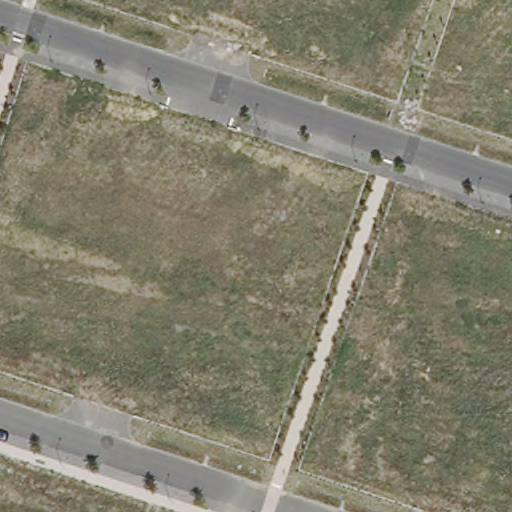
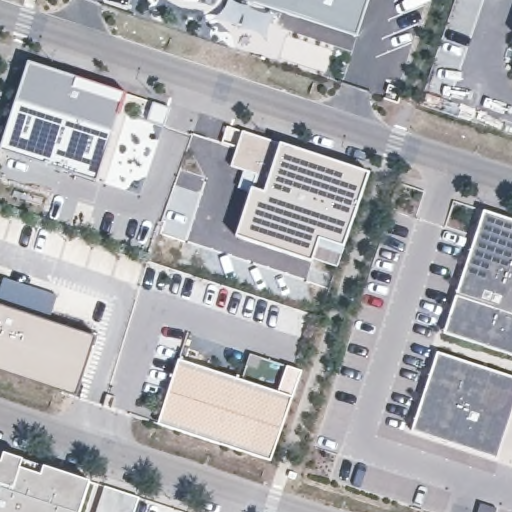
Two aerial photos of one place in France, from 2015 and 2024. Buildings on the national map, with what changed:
new [(361,34),(254,0),(372,0),(361,34)]
new [(28,61),(77,77),(74,84),(122,99),(97,179),(1,149),(28,61)]
new [(220,141),(226,125),(241,130),(370,172),(337,267),(291,256),(235,236),(249,191),(237,187),(242,171),(229,166),(236,147),(220,141)]
new [(512,353),(445,332),(485,210),(512,220),(512,353)]
new [(0,370),(0,287),(4,277),(59,295),(50,322),(95,337),(76,395),(0,370)]
new [(512,412),(497,457),(413,430),(438,352),(512,378),(512,412)]
new [(292,396),(271,458),(160,422),(179,360),(292,396)]
new [(0,466),(4,454),(23,460),(19,474),(41,480),(47,470),(91,485),(82,512),(0,512),(0,466)]
new [(139,497),(134,512),(96,512),(105,486),(139,497)]

